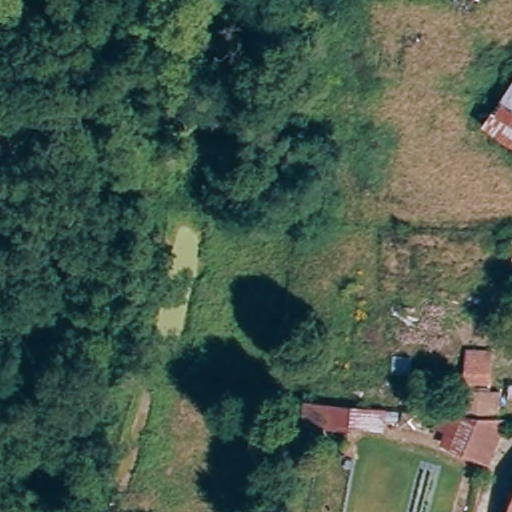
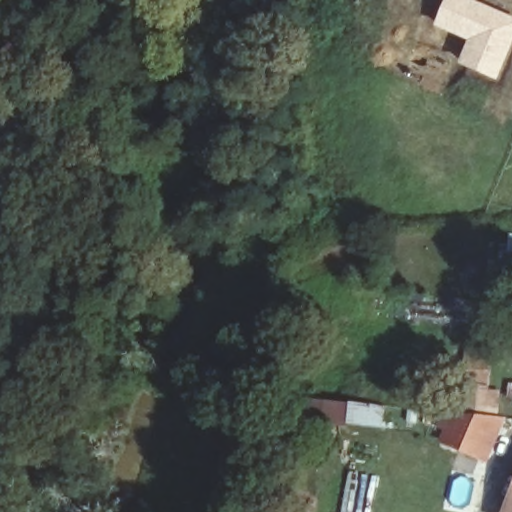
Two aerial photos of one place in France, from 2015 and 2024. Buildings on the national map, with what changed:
new [(512,17),(512,47),(497,81),(457,64),(467,41),(434,27),(445,0),(472,0),(512,17)]
demolished [(512,74),(512,147),(475,124),(512,74)]
new [(512,232),(512,261),(505,260),(509,232),(512,232)]
unchanged [(451,387),(462,388),(462,350),(486,351),(486,389),(497,390),(491,421),(447,417),(451,387)]
unchanged [(380,408),(380,429),(297,420),(300,400),(380,408)]
unchanged [(491,421),(491,422),(476,457),(437,443),(447,418),(447,417),(491,421)]
unchanged [(512,512),(509,512),(512,503),(512,512)]

